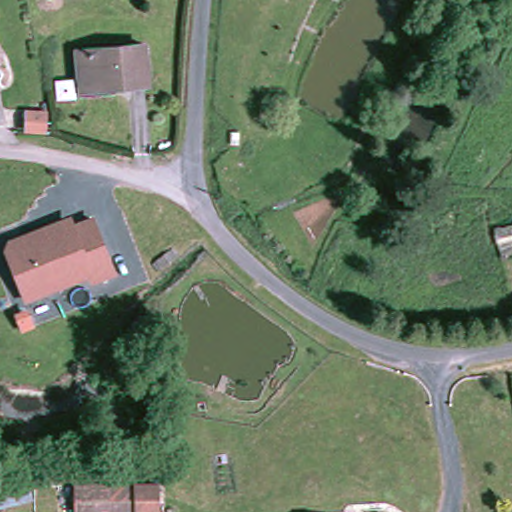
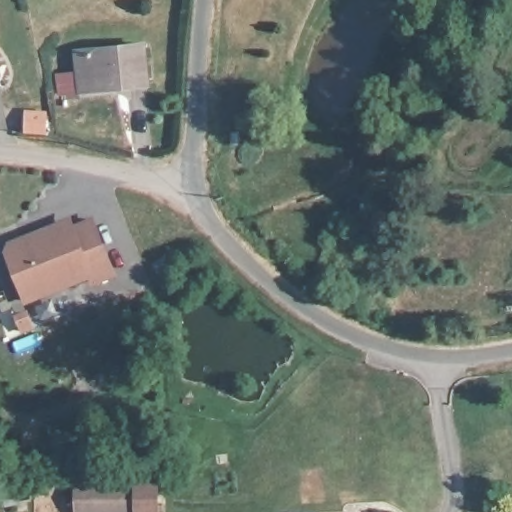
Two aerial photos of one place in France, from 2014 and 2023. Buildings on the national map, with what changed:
unchanged [(89,88),(84,56),(151,47),(157,87),(124,91),(90,96),(89,88)]
unchanged [(52,131),(32,133),(30,113),(49,111),(52,131)]
unchanged [(70,212),(74,220),(96,211),(122,274),(92,285),(89,279),(27,304),(3,241),(70,212)]
unchanged [(161,512),(72,512),(73,481),(160,480),(161,512)]

